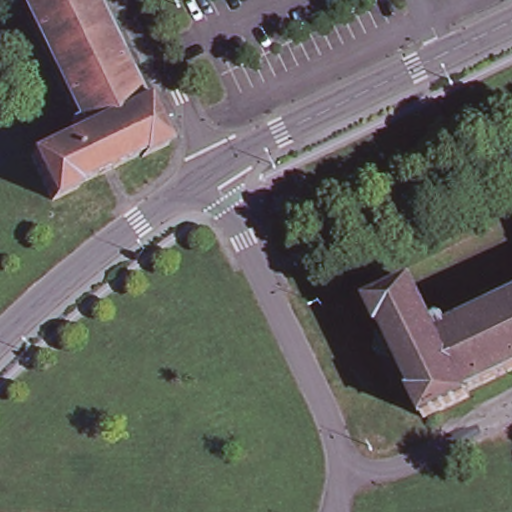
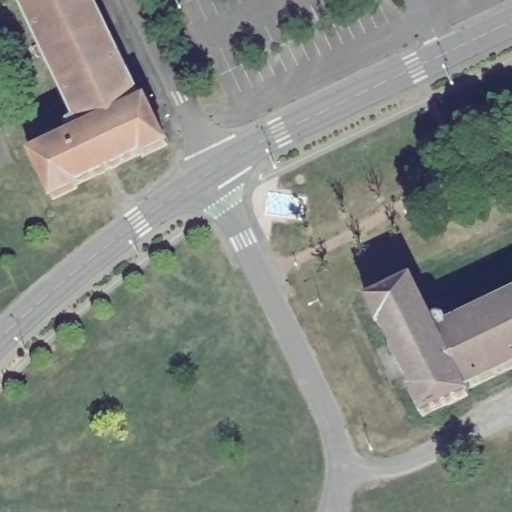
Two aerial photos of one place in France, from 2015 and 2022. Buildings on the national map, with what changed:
unchanged [(8,0),(20,0),(14,3),(8,0)]
unchanged [(151,104),(172,149),(146,161),(144,158),(123,168),(124,169),(104,178),(104,177),(81,188),(83,191),(56,204),(34,159),(75,140),(73,132),(75,126),(81,125),(21,0),(95,0),(146,106),(151,104)]
unchanged [(467,390),(469,394),(424,415),(411,390),(414,388),(403,365),(401,366),(393,348),(394,348),(384,325),(379,326),(368,301),(413,279),(433,320),(439,317),(445,319),(448,325),(512,294),(512,368),(467,390)]

